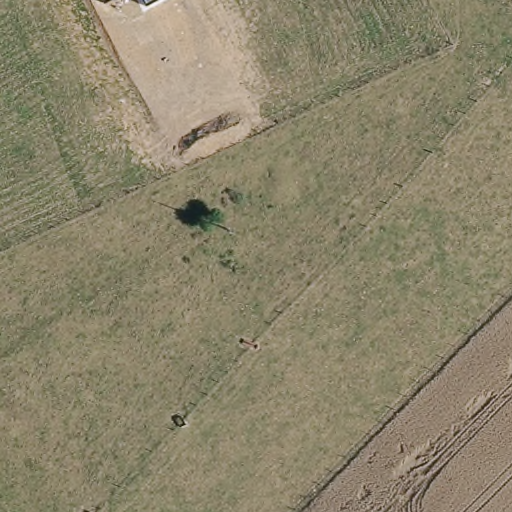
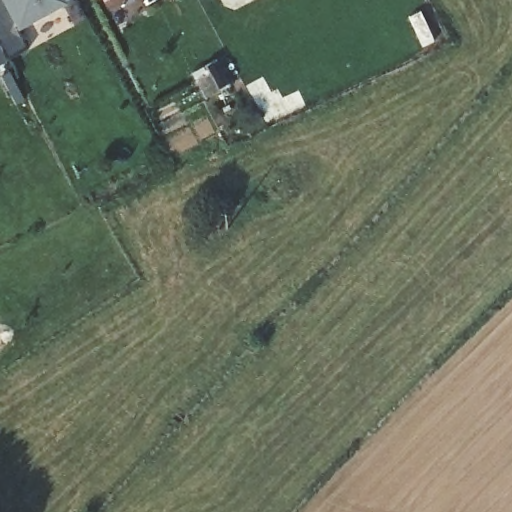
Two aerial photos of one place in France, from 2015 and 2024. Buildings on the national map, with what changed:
new [(58,4),(14,28),(0,2),(0,0),(56,0),(58,4)]
unchanged [(103,1),(103,0),(106,0),(103,1)]
unchanged [(144,4),(142,0),(152,0),(144,4)]
new [(0,61),(0,55),(3,60),(0,61)]

